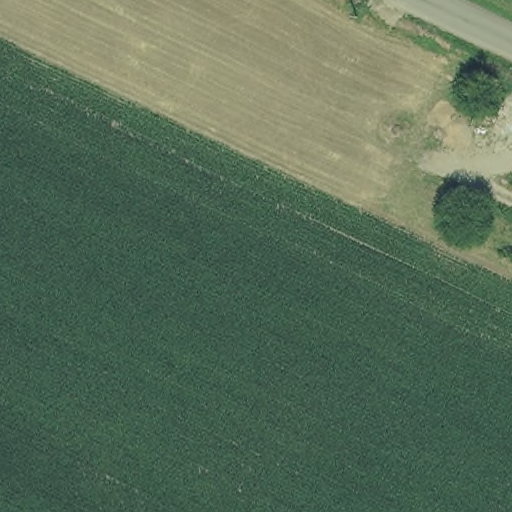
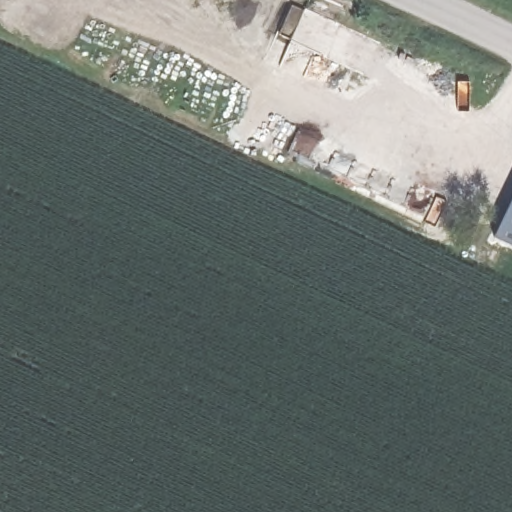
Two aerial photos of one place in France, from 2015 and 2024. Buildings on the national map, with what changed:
new [(512,197),(512,246),(493,237),(512,197)]

